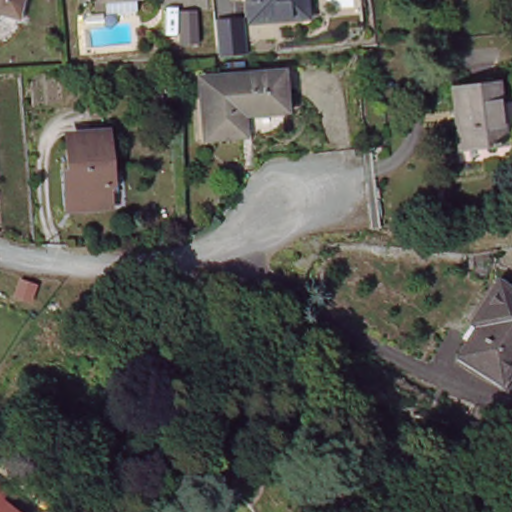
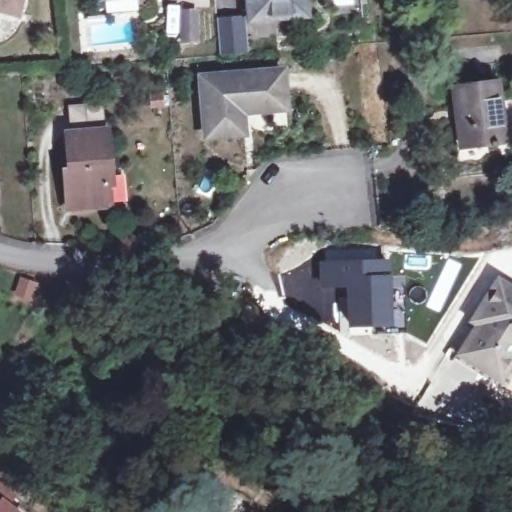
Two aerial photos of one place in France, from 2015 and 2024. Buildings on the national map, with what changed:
unchanged [(0,8),(0,0),(21,0),(18,12),(0,8)]
unchanged [(108,0),(138,0),(139,8),(109,10),(108,0)]
unchanged [(256,16),(254,0),(305,0),(306,12),(256,16)]
unchanged [(198,14),(200,44),(185,45),(183,15),(198,14)]
new [(226,23),(228,58),(203,60),(201,25),(226,23)]
unchanged [(279,70),(283,109),(239,112),(241,134),(203,137),(198,77),(279,70)]
unchanged [(499,82),(506,141),(464,146),(457,87),(499,82)]
unchanged [(73,169),(70,135),(108,132),(111,169),(108,170),(111,204),(71,207),(68,169),(73,169)]
new [(389,258),(392,326),(348,327),(347,287),(321,286),(321,258),(389,258)]
unchanged [(472,318),(494,283),(512,294),(512,353),(496,378),(459,355),(479,323),(472,318)]
unchanged [(18,496),(9,507),(16,512),(0,512),(0,483),(18,496)]

